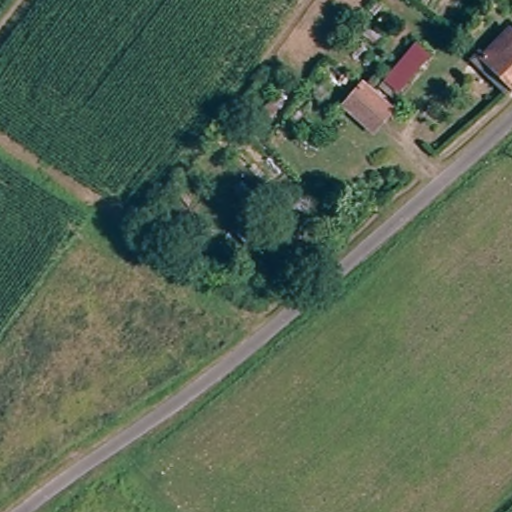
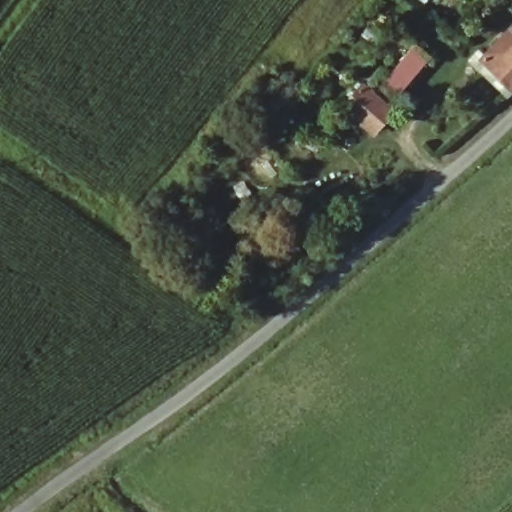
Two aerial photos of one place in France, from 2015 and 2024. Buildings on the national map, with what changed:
unchanged [(512,83),(487,55),(478,63),(467,50),(475,44),(480,39),(488,48),(512,27),(512,83)]
unchanged [(412,48),(416,45),(433,58),(428,65),(445,77),(428,92),(410,79),(400,93),(384,82),(397,65),(388,58),(404,40),(412,48)]
unchanged [(393,117),(375,133),(346,100),(365,84),(393,117)]

